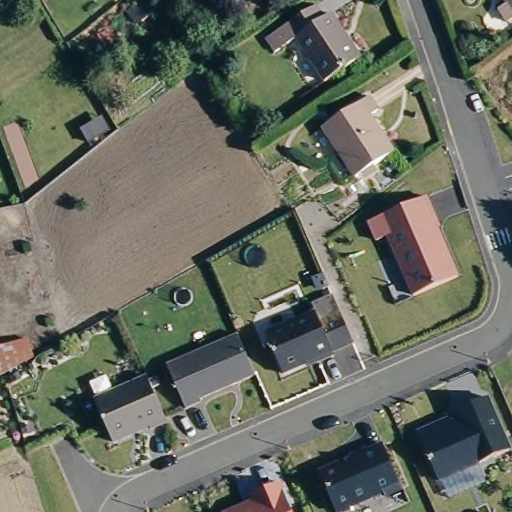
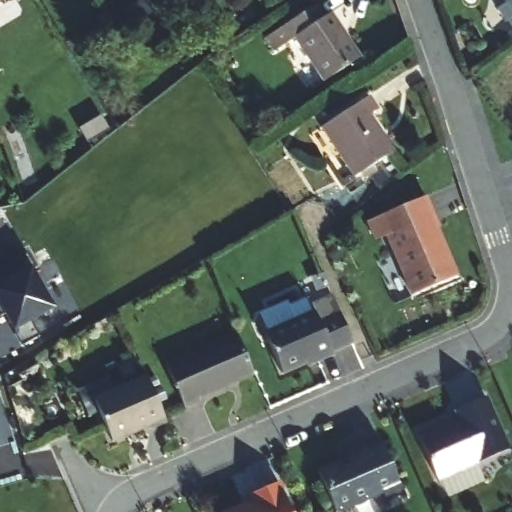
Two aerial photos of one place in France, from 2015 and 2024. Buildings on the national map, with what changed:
unchanged [(509,23),(500,11),(510,1),(509,0),(512,0),(512,21),(509,23)]
unchanged [(320,16),(328,13),(357,56),(322,82),(293,39),(273,54),(264,40),(283,26),(313,6),(320,16)]
unchanged [(359,174),(324,126),(369,95),(382,112),(371,120),(394,150),(359,174)]
unchanged [(375,239),(367,222),(428,194),(441,227),(439,228),(458,274),(410,295),(386,235),(375,239)]
new [(53,303),(48,306),(45,314),(31,322),(38,335),(22,345),(0,308),(0,268),(25,254),(53,303)]
unchanged [(282,373),(263,332),(313,309),(320,319),(337,311),(352,342),(282,373)]
unchanged [(187,407),(165,366),(236,333),(255,373),(187,407)]
demolished [(0,345),(27,337),(35,356),(0,375),(0,345)]
unchanged [(112,444),(91,400),(146,375),(167,420),(112,444)]
unchanged [(439,481),(415,430),(485,398),(508,447),(439,481)]
unchanged [(385,496),(383,493),(339,512),(337,512),(319,469),(382,442),(402,489),(385,496)]
unchanged [(247,496),(280,483),(292,512),(232,512),(250,503),(247,496)]

